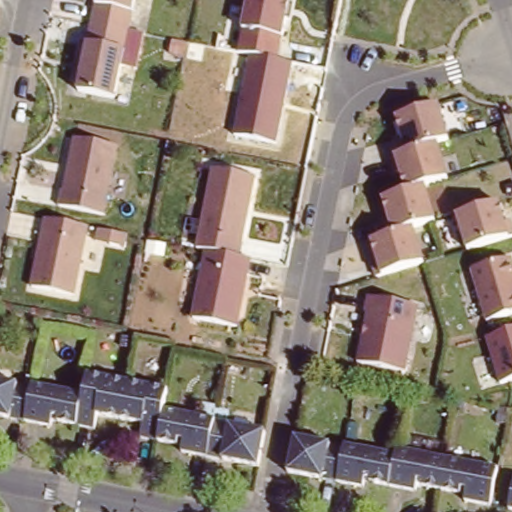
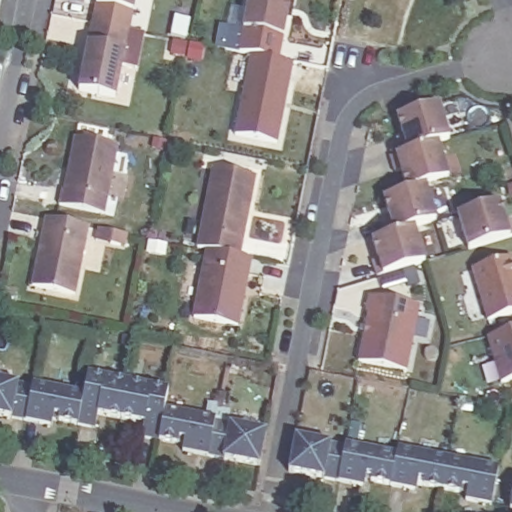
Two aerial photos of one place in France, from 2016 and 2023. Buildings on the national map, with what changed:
unchanged [(94,6),(94,0),(134,0),(132,14),(94,6)]
unchanged [(239,43),(246,0),(291,0),(282,50),(239,43)]
unchanged [(123,66),(126,50),(83,41),(94,6),(132,14),(130,28),(145,31),(139,68),(123,66)]
unchanged [(115,104),(72,94),(83,41),(126,50),(115,104)]
unchanged [(250,61),(236,59),(239,43),(282,50),(281,58),(292,59),(277,144),(236,133),(250,61)]
unchanged [(396,118),(439,103),(450,137),(439,141),(407,151),(396,118)]
unchanged [(104,214),(56,200),(71,134),(117,142),(104,214)]
unchanged [(380,276),(367,234),(389,228),(382,194),(405,189),(395,155),(439,141),(448,178),(430,187),(437,219),(417,229),(427,263),(380,276)]
unchanged [(255,172),(240,254),(252,257),(239,329),(192,319),(205,249),(194,246),(210,164),(255,172)]
unchanged [(512,238),(463,254),(451,216),(502,199),(512,238)]
unchanged [(73,295),(30,289),(42,213),(88,222),(73,295)]
unchanged [(487,322),(472,268),(512,254),(512,314),(487,322)]
unchanged [(366,290),(420,300),(406,372),(355,361),(366,290)]
unchanged [(502,384),(487,336),(512,329),(512,381),(502,384)]
unchanged [(142,426),(136,424),(102,417),(96,416),(93,429),(56,422),(50,421),(50,428),(0,418),(0,380),(30,387),(30,383),(82,394),(86,373),(167,390),(164,410),(213,420),(212,424),(260,433),(253,467),(181,453),(182,447),(176,446),(139,438),(142,426)]
unchanged [(424,484),(418,483),(417,491),(374,481),(367,479),(365,486),(289,470),(295,437),(346,446),(347,443),(397,454),(399,448),(500,469),(492,504),(465,499),(467,494),(460,492),(424,484)]
unchanged [(504,508),(510,476),(512,476),(512,509),(504,508)]

